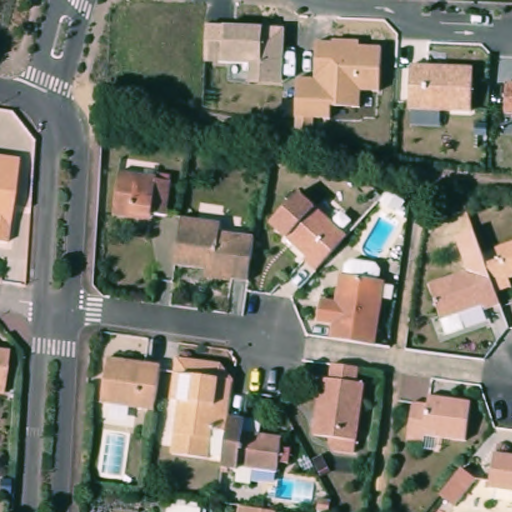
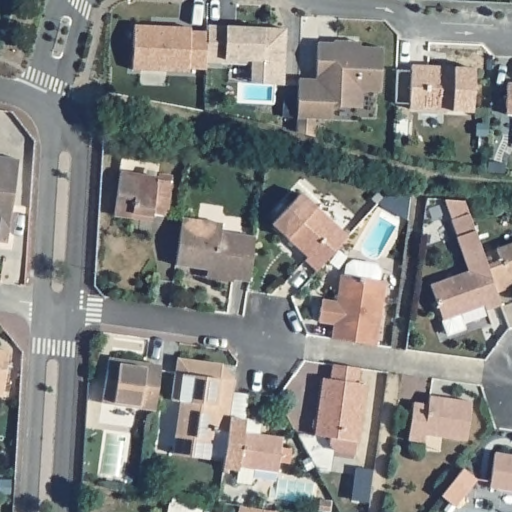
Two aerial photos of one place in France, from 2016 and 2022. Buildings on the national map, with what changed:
unchanged [(249,80),(250,63),(205,60),(206,22),(286,26),(284,81),(249,80)]
new [(205,60),(206,69),(132,69),(134,25),(190,25),(190,29),(206,30),(205,60)]
unchanged [(362,89),(361,105),(332,105),(330,118),(315,117),(315,131),(295,130),(295,75),(316,76),(319,40),(382,44),(380,91),(362,89)]
unchanged [(410,107),(411,62),(475,65),(472,110),(410,107)]
unchanged [(504,111),(507,80),(512,80),(512,112),(504,111)]
unchanged [(6,242),(0,241),(0,158),(19,160),(6,242)]
unchanged [(160,179),(159,182),(171,184),(167,215),(159,215),(154,218),(131,215),(130,220),(114,217),(119,173),(160,179)]
unchanged [(300,195),(348,238),(319,270),(306,261),(310,257),(273,225),(300,195)]
unchanged [(220,220),(219,230),(257,235),(250,284),(219,280),(219,275),(177,269),(184,216),(220,220)]
unchanged [(496,252),(512,246),(512,282),(510,282),(512,289),(512,292),(498,297),(490,275),(488,268),(500,263),(496,252)]
unchanged [(487,314),(485,306),(441,321),(429,286),(472,270),(476,280),(490,275),(498,297),(502,308),(487,314)]
unchanged [(385,281),(376,343),(332,337),(342,275),(385,281)]
unchanged [(9,393),(0,392),(0,351),(14,352),(9,393)]
unchanged [(165,363),(157,411),(105,404),(113,355),(165,363)]
unchanged [(179,358),(195,360),(225,364),(239,377),(235,395),(235,400),(230,430),(217,429),(211,462),(176,457),(178,431),(184,432),(187,402),(174,401),(179,358)]
unchanged [(333,380),(335,367),(360,370),(359,385),(368,387),(358,455),(336,453),(330,447),(331,438),(316,437),(323,380),(333,380)]
unchanged [(435,403),(435,395),(474,401),(469,445),(431,440),(430,445),(412,442),(417,401),(435,403)]
unchanged [(244,444),(244,435),(280,438),(277,473),(255,471),(252,490),(235,487),(236,473),(225,472),(229,442),(244,444)]
unchanged [(512,457),(512,494),(492,492),(498,455),(512,457)]
new [(463,467),(476,479),(455,506),(441,495),(463,467)]
new [(239,505),(275,510),(275,512),(238,512),(239,505)]

